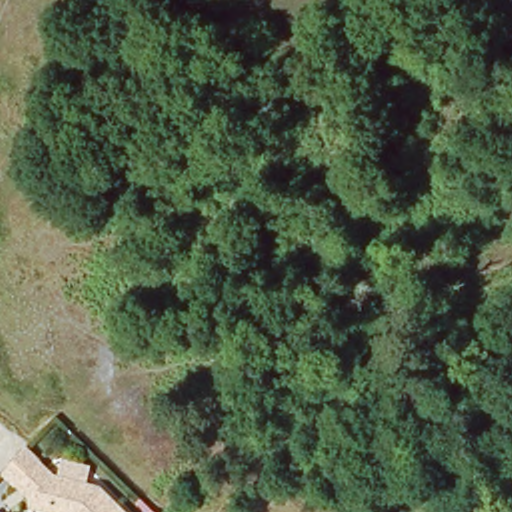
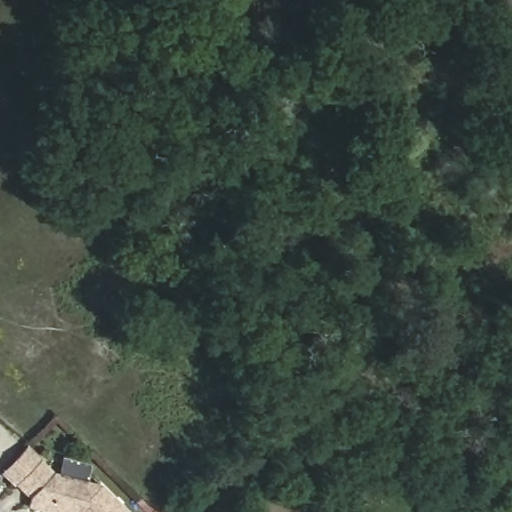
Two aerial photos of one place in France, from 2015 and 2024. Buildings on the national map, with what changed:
unchanged [(32,505),(33,501),(18,485),(5,472),(29,447),(42,460),(54,472),(100,487),(125,512),(57,512),(32,505)]

